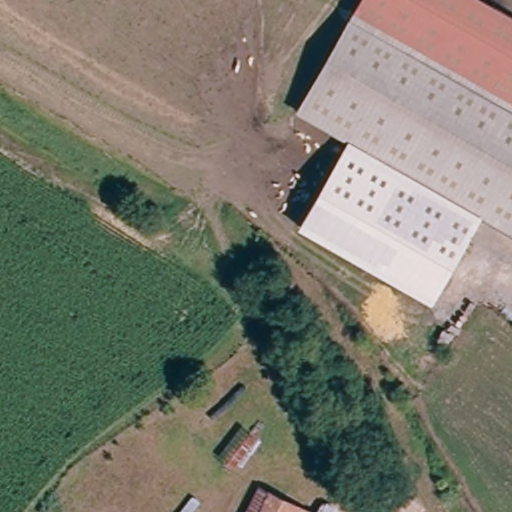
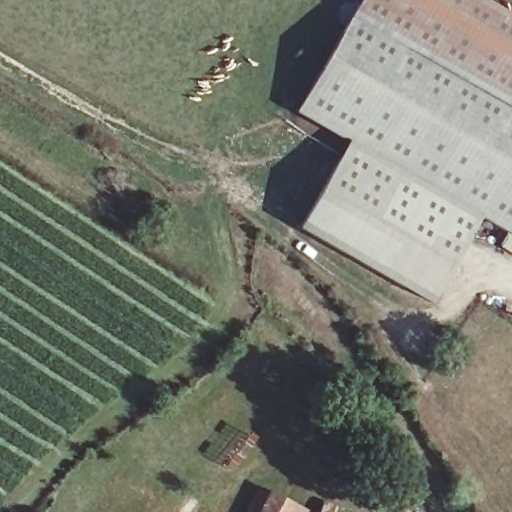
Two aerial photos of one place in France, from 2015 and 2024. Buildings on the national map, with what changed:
unchanged [(308,121),(356,35),(375,0),(495,0),(512,9),(512,233),(317,126),(308,121)]
unchanged [(432,305),(298,229),(347,143),(481,216),(432,305)]
unchanged [(255,488),(309,512),(243,512),(255,488)]

